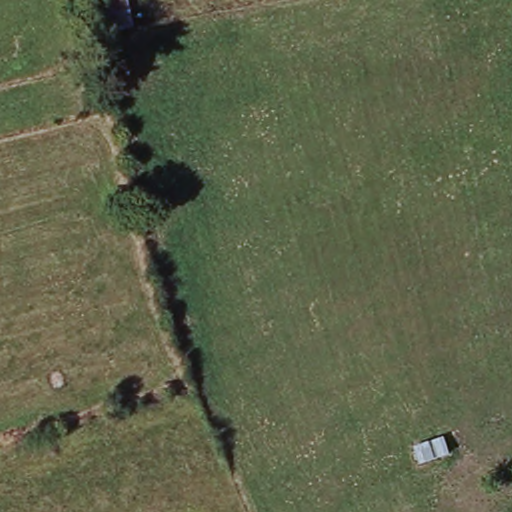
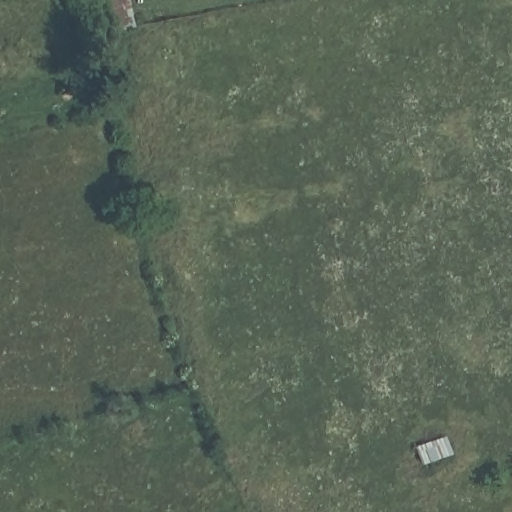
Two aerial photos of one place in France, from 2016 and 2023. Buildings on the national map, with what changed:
[]

